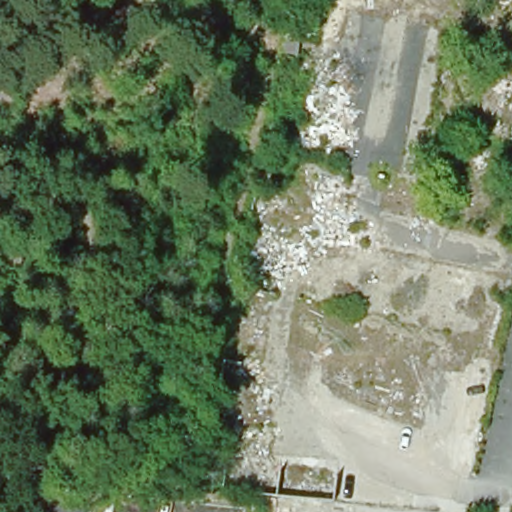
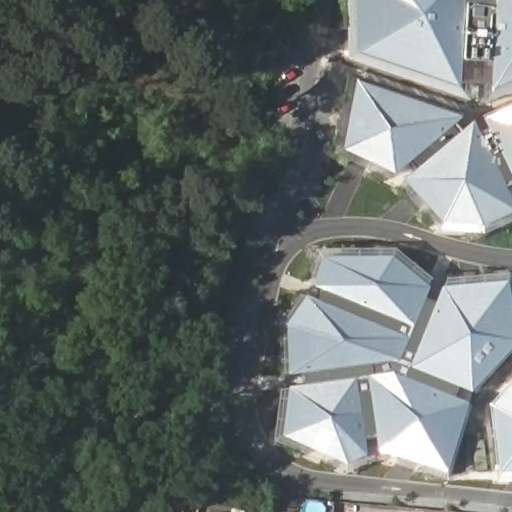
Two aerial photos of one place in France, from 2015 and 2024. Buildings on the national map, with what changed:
new [(492,102),(495,83),(470,84),(469,101),(354,60),(354,0),(512,0),(512,93),(492,102)]
demolished [(299,34),(296,52),(282,49),(285,31),(299,34)]
new [(512,193),(512,194),(512,217),(509,221),(447,227),(413,179),(426,171),(414,164),(402,174),(343,147),(353,79),(468,119),(461,124),(467,133),(477,125),(481,134),(494,130),(488,116),(512,106),(512,192),(512,193)]
new [(474,389),(464,386),(459,399),(474,405),(454,471),(382,451),(382,438),(369,439),(371,459),(348,463),(287,437),(293,388),(312,387),(309,375),(292,376),(294,324),(310,299),(323,302),(327,288),(315,284),(325,258),(394,256),(433,289),(430,298),(443,304),(448,288),(512,284),(512,351),(474,389)]
demolished [(231,448),(334,461),(331,504),(218,498),(217,479),(190,469),(210,357),(248,369),(231,448)]
new [(498,473),(493,406),(512,389),(512,473),(498,473)]
unchanged [(69,508),(69,512),(53,512),(54,505),(69,508)]

